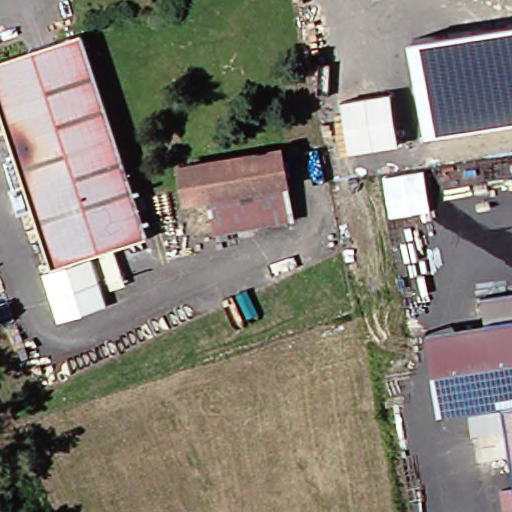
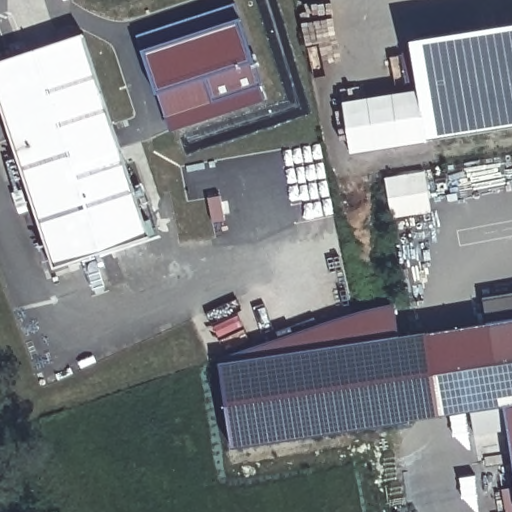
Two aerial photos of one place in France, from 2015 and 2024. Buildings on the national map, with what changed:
new [(137,35),(234,4),(264,100),(169,131),(137,35)]
unchanged [(342,99),(418,88),(411,39),(512,23),(512,123),(432,136),(431,141),(351,155),(342,99)]
unchanged [(149,235),(125,243),(124,243),(55,265),(0,93),(0,57),(88,30),(149,235)]
unchanged [(194,194),(189,160),(289,142),(295,177),(212,192),(194,194)]
new [(424,171),(431,211),(391,218),(384,177),(424,171)]
unchanged [(295,177),(300,217),(200,234),(197,209),(215,206),(212,192),(295,177)]
unchanged [(124,243),(135,282),(109,288),(112,302),(59,319),(43,269),(55,265),(124,243)]
unchanged [(472,433),(469,411),(439,415),(425,332),(488,322),(484,297),(512,291),(512,469),(506,428),(472,433)]
new [(398,336),(425,332),(439,415),(232,448),(219,360),(350,312),(394,302),(398,336)]

